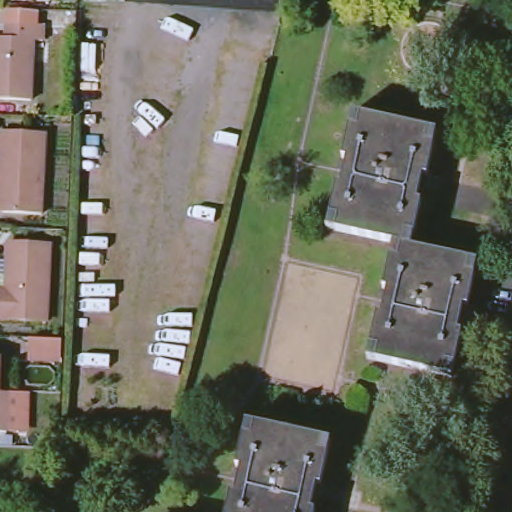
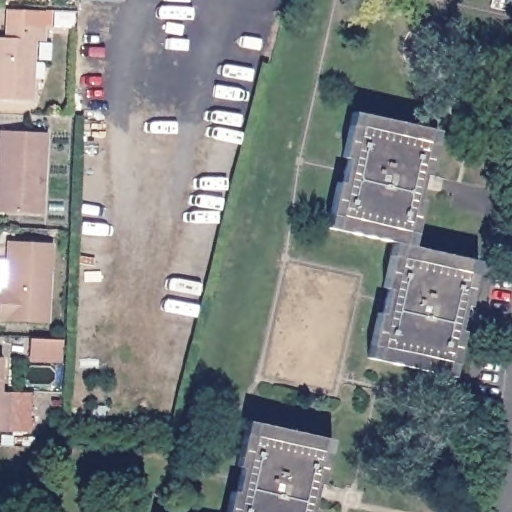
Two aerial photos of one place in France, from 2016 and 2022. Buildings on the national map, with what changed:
unchanged [(119,5),(78,0),(79,0),(119,0),(119,5)]
unchanged [(14,26),(15,12),(26,12),(49,14),(48,28),(48,45),(43,45),(41,101),(0,101),(0,61),(0,41),(13,41),(14,26)]
unchanged [(336,227),(338,215),(330,213),(337,181),(341,182),(347,157),(343,155),(350,125),(358,126),(360,114),(428,128),(425,141),(433,144),(427,175),(422,174),(417,200),(421,200),(414,232),(405,230),(402,242),(336,227)]
unchanged [(5,210),(6,184),(0,183),(2,129),(47,131),(43,212),(5,210)]
unchanged [(1,316),(1,295),(7,295),(10,240),(51,242),(48,318),(1,316)]
unchanged [(380,345),(371,343),(378,312),(382,312),(388,288),(384,286),(391,255),(399,256),(402,242),(468,258),(466,271),(475,274),(467,305),(463,305),(457,330),(462,331),(455,362),(446,361),(443,373),(377,358),(380,345)]
unchanged [(62,337),(61,361),(28,360),(30,336),(62,337)]
unchanged [(0,426),(0,386),(20,387),(17,426),(0,426)]
unchanged [(236,486),(241,461),(237,460),(243,428),(253,430),(255,417),(322,432),(320,446),(328,448),(321,479),(316,478),(311,503),(315,505),(314,512),(226,512),(231,486),(236,486)]

